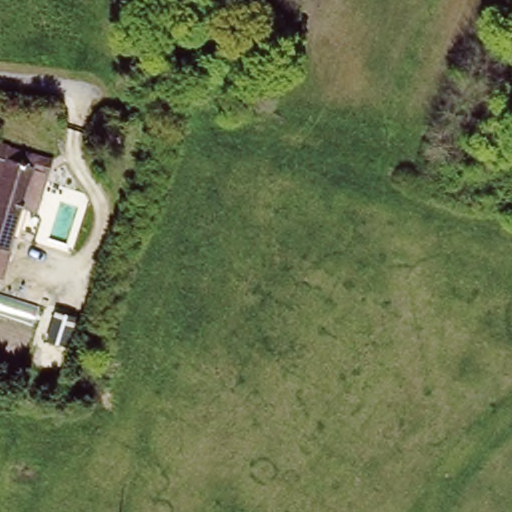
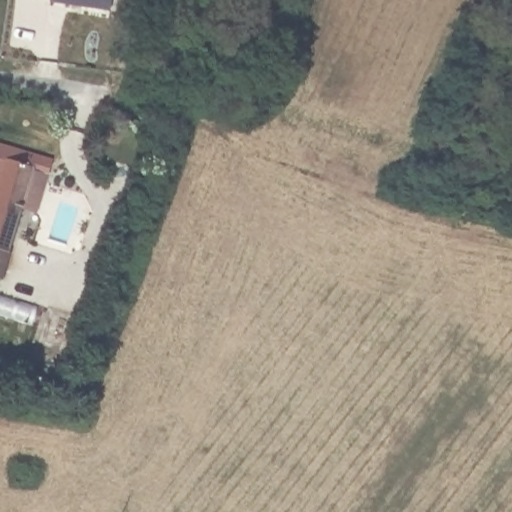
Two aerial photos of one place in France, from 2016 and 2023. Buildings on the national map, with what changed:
new [(110,10),(51,1),(51,0),(112,0),(110,10)]
unchanged [(36,155),(7,249),(0,271),(0,142),(36,155)]

